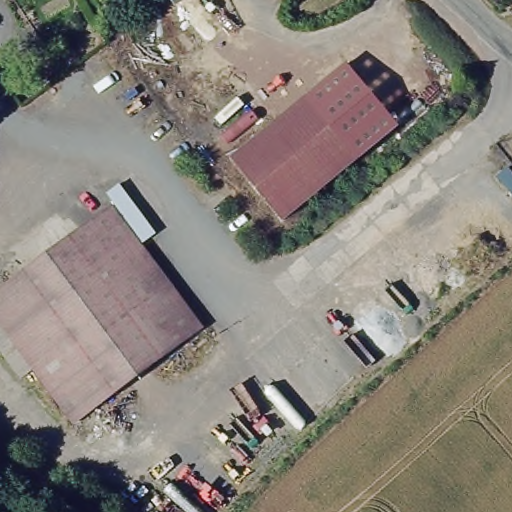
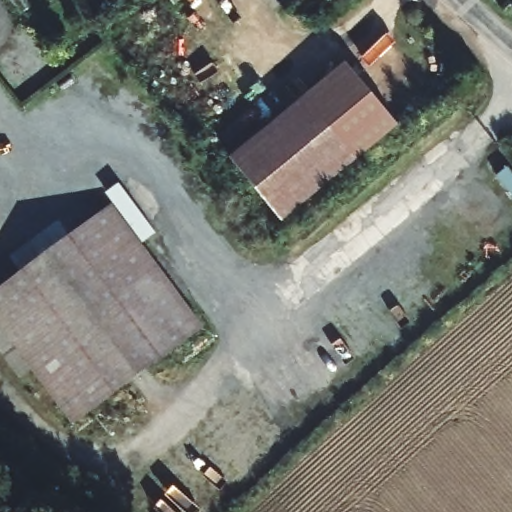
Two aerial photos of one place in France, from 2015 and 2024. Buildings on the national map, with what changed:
unchanged [(309,96),(345,64),(393,122),(359,155),(309,96)]
unchanged [(359,155),(280,220),(230,160),(309,96),(359,155)]
unchanged [(0,338),(0,309),(0,308),(0,285),(117,202),(200,321),(75,413),(25,342),(10,353),(0,338)]

